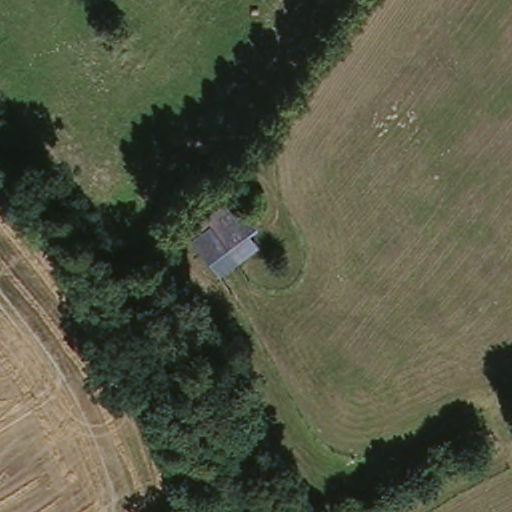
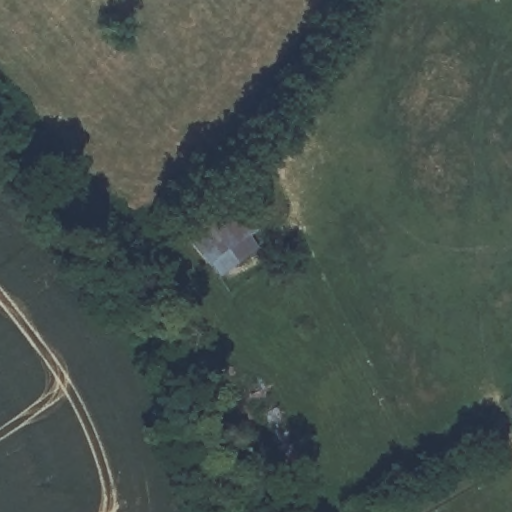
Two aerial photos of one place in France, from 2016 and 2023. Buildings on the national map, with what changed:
unchanged [(185,236),(209,222),(226,246),(231,256),(203,264),(185,236)]

